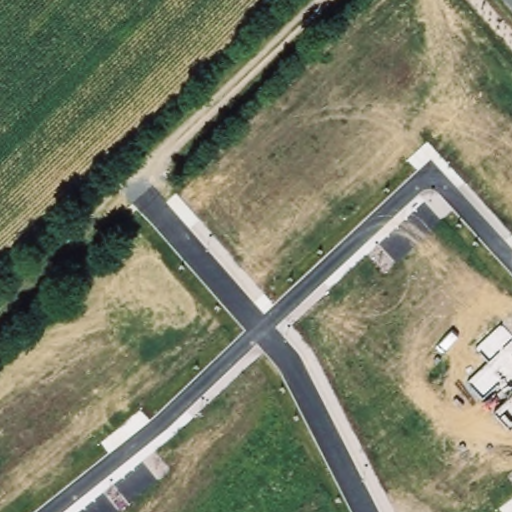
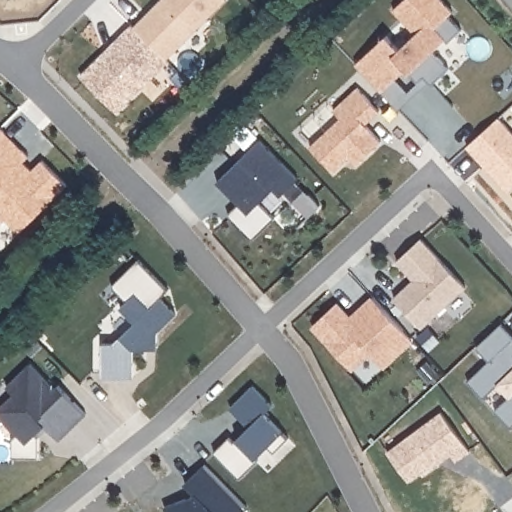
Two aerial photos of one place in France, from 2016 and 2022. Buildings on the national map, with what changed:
new [(135,26),(161,0),(227,0),(167,58),(118,111),(81,74),(132,23),(135,26)]
new [(384,45),(400,29),(377,6),(383,0),(430,0),(437,7),(433,11),(446,25),(433,38),(430,35),(417,47),(434,64),(417,80),(409,72),(403,78),(391,64),(366,88),(340,60),(371,31),(384,45)]
new [(357,86),(379,110),(366,124),(382,139),(355,165),(348,158),(334,171),(311,145),(341,115),(333,109),(357,86)]
new [(484,113),(512,144),(512,170),(493,187),(452,142),(484,113)]
new [(25,160),(33,168),(43,159),(66,184),(20,231),(6,218),(0,224),(0,127),(30,156),(25,160)]
new [(203,179),(245,137),(284,176),(267,193),(259,185),(246,199),(261,214),(238,236),(213,211),(224,201),(219,195),(203,179)]
new [(290,186),(306,202),(289,220),(273,204),(290,186)]
new [(400,276),(383,257),(407,234),(452,282),(409,324),(380,294),(400,276)]
new [(135,347),(121,347),(120,375),(89,375),(89,341),(101,341),(121,320),(106,305),(113,299),(98,283),(125,257),(156,288),(147,296),(163,311),(144,330),(144,339),(144,347),(135,347)]
new [(337,301),(350,316),(371,296),(412,340),(384,366),(372,353),(352,369),(312,325),(337,301)]
unchanged [(496,409),(510,394),(500,382),(484,396),(468,378),(489,359),(477,346),(503,321),(512,332),(512,427),(496,409)]
new [(0,392),(0,380),(18,363),(42,387),(46,384),(74,413),(47,439),(33,425),(24,433),(27,436),(26,457),(1,457),(1,438),(6,433),(0,427),(0,395),(1,393),(0,392)]
new [(217,435),(222,439),(236,425),(218,406),(240,384),(260,403),(252,411),(276,436),(262,451),(256,444),(244,456),(246,458),(227,476),(201,450),(217,435)]
new [(184,493),(173,481),(192,462),(235,506),(229,512),(155,512),(152,504),(184,493)]

